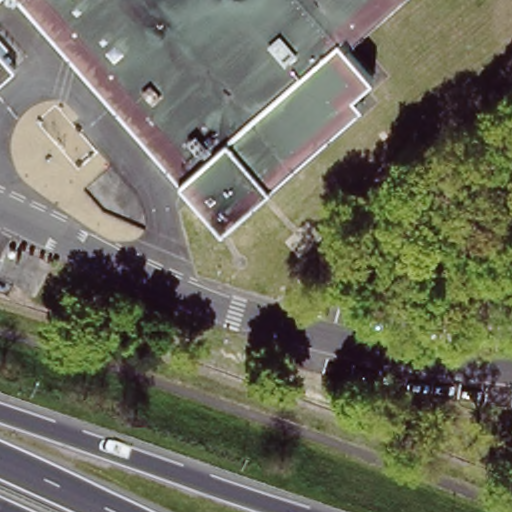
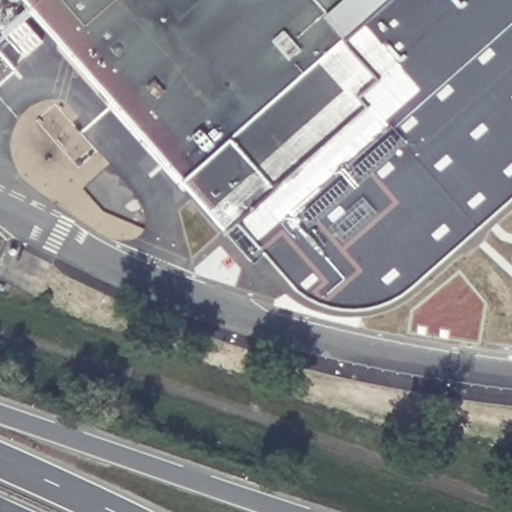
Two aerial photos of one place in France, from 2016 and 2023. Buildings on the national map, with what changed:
unchanged [(349,33),(378,70),(357,90),(365,101),(227,219),(28,0),(387,0),(349,33)]
new [(365,101),(357,90),(378,70),(349,33),(387,0),(512,0),(512,188),(402,284),(385,293),(370,298),(354,300),(335,298),(315,293),(301,283),(239,215),(236,211),(365,101)]
unchanged [(0,75),(0,51),(13,64),(0,75)]

